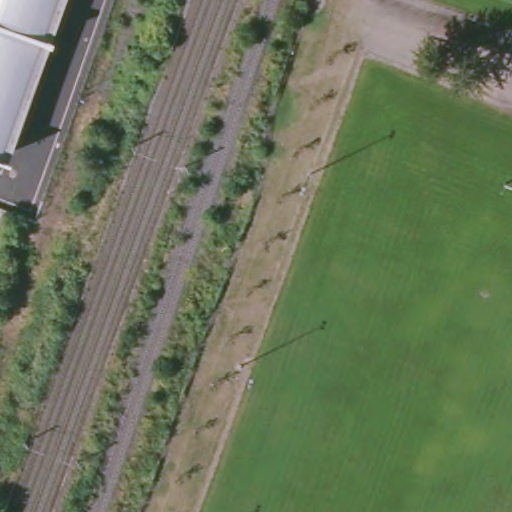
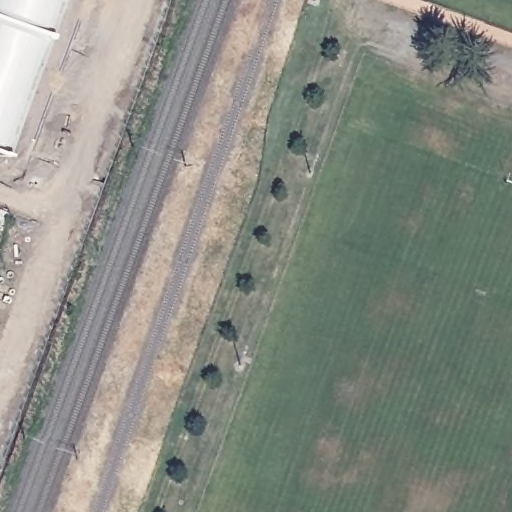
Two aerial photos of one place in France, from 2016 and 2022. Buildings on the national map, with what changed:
unchanged [(1,155),(0,154),(0,0),(57,0),(1,155)]

